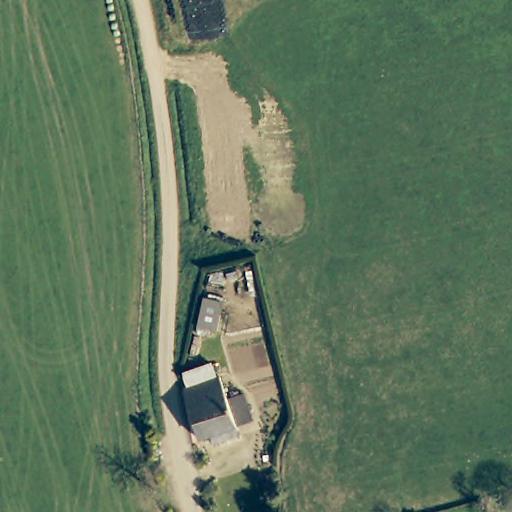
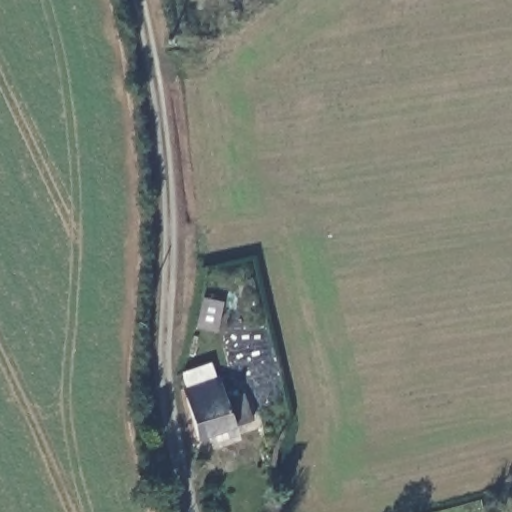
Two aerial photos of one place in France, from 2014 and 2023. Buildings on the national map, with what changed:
unchanged [(221,381),(230,405),(246,399),(256,424),(201,444),(186,395),(221,381)]

